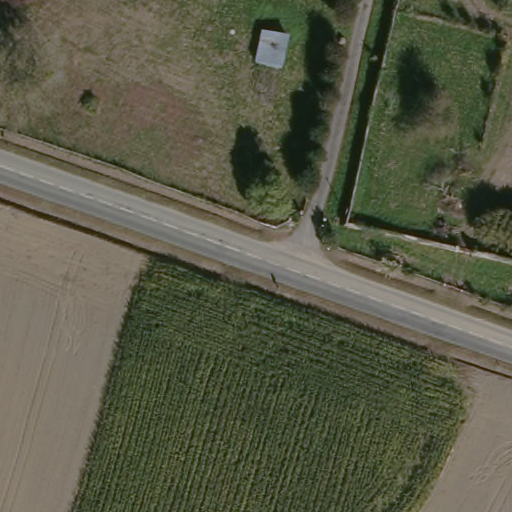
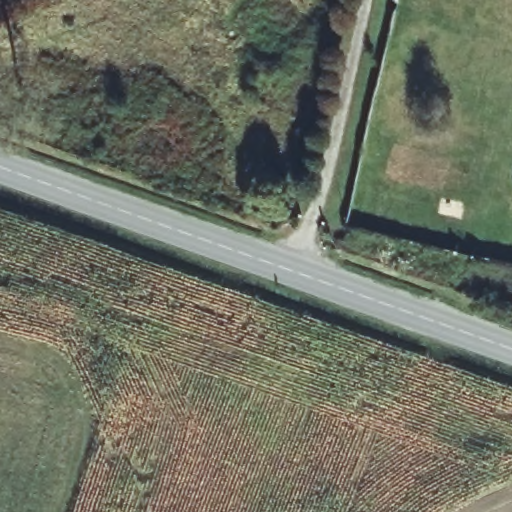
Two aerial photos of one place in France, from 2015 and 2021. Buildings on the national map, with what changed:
demolished [(286,34),(283,67),(254,61),(262,31),(286,34)]

